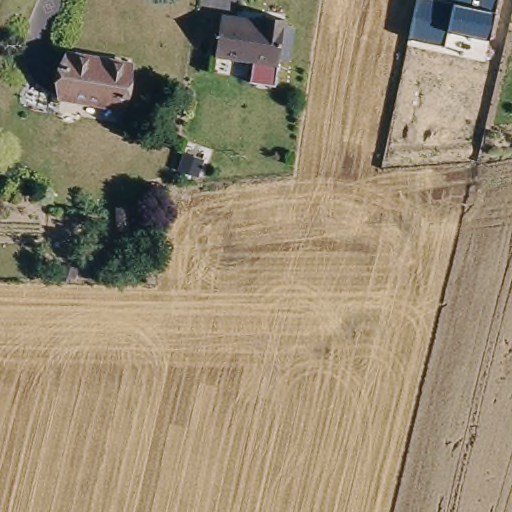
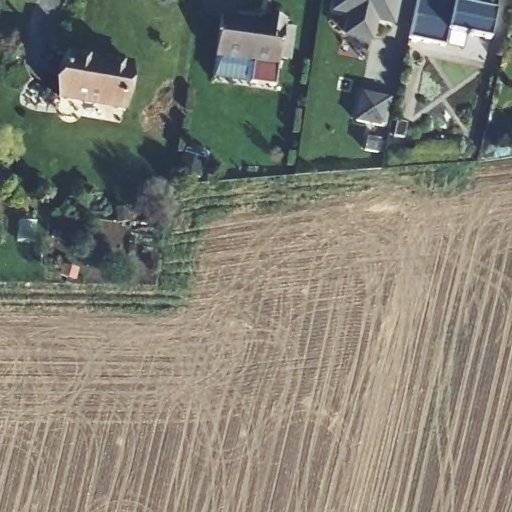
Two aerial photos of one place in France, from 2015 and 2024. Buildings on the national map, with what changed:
new [(377,21),(373,41),(345,35),(347,19),(330,12),(333,0),(401,0),(395,26),(377,21)]
unchanged [(448,32),(445,46),(407,39),(416,0),(499,0),(490,41),(448,32)]
unchanged [(222,21),(265,27),(266,22),(286,25),(278,71),(214,60),(222,21)]
unchanged [(72,56),(131,64),(126,105),(67,97),(72,56)]
new [(385,127),(353,121),(359,92),(392,99),(385,127)]

